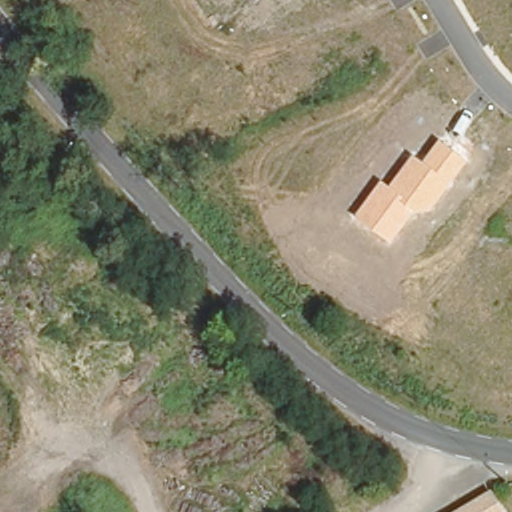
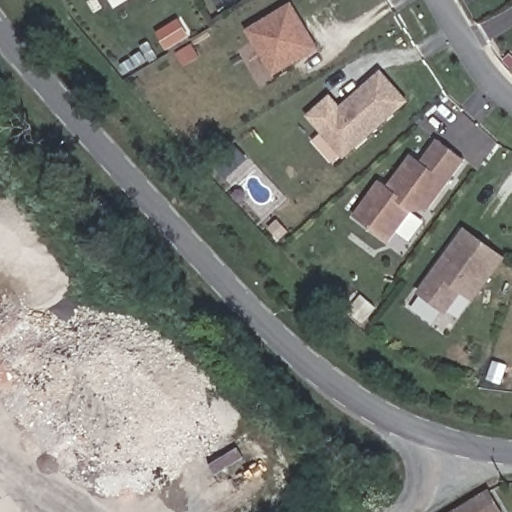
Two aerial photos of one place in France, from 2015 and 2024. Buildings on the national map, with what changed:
new [(274,77),(246,30),(292,1),(320,48),(274,77)]
new [(381,70),(410,101),(343,160),(306,116),(330,94),(341,106),(381,70)]
unchanged [(433,209),(413,212),(389,244),(355,217),(383,180),(387,184),(412,152),(422,159),(439,136),(467,162),(433,209)]
new [(462,293),(446,315),(418,292),(465,228),(507,258),(473,302),(462,293)]
unchanged [(512,506),(512,512),(444,512),(496,477),(512,506)]

